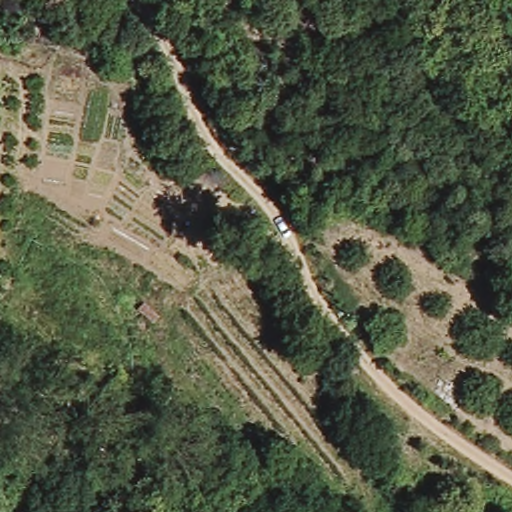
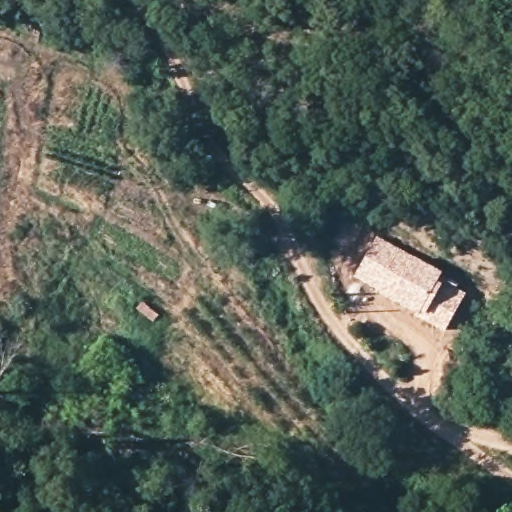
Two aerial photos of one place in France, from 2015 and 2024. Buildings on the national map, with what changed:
new [(415,257),(444,273),(440,278),(467,295),(446,332),(417,315),(391,301),(355,278),(378,237),(415,257)]

